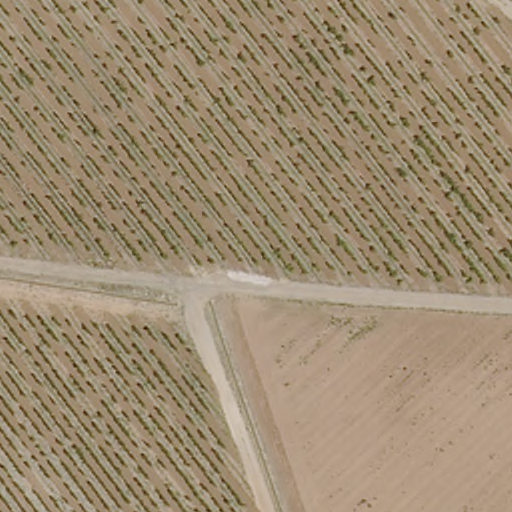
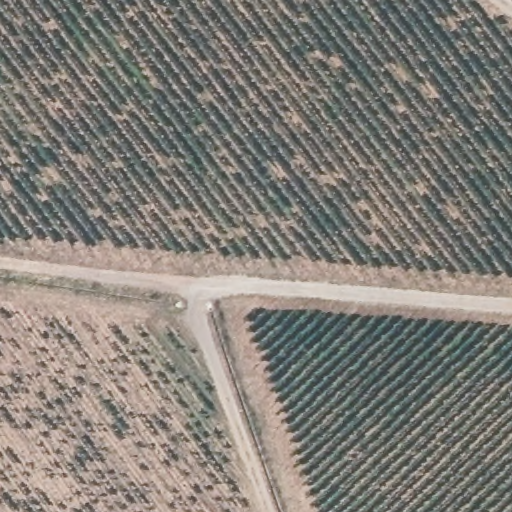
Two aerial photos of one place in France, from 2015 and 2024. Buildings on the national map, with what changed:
[]

